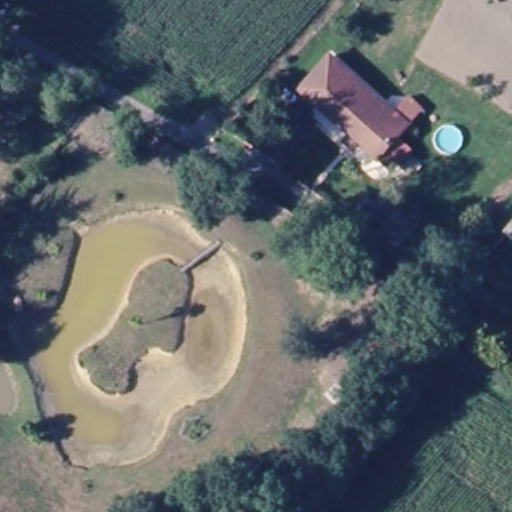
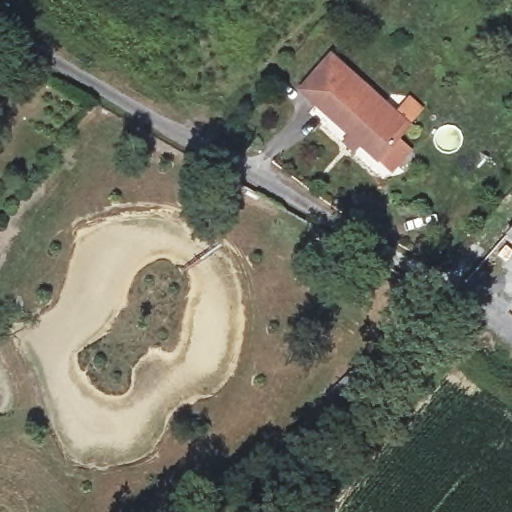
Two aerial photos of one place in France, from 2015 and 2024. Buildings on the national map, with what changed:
unchanged [(395,112),(408,97),(424,111),(397,143),(409,156),(390,176),(296,94),(329,54),(395,112)]
unchanged [(512,239),(508,235),(512,232),(512,239)]

